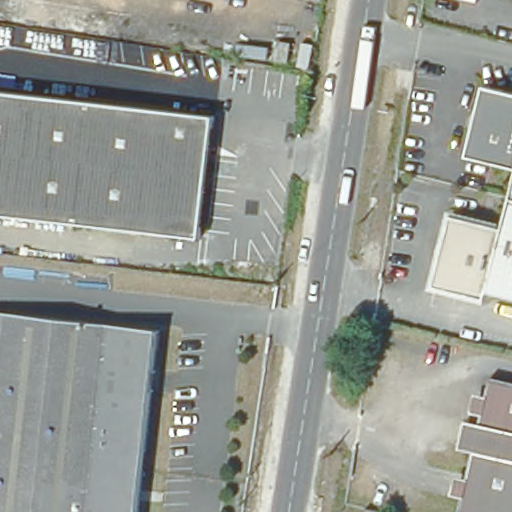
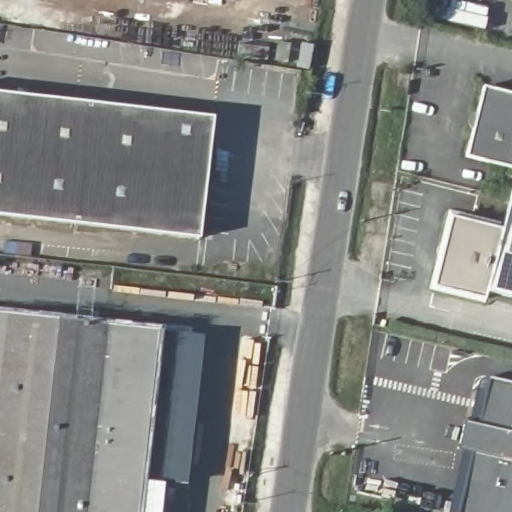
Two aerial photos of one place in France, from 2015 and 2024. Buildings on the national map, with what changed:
unchanged [(294,49),(291,70),(278,68),(281,48),(294,49)]
unchanged [(213,114),(198,235),(0,212),(0,89),(213,114)]
unchanged [(437,284),(451,220),(500,229),(510,178),(463,167),(481,91),(512,99),(512,300),(487,295),(484,306),(434,296),(437,284)]
unchanged [(154,330),(137,512),(0,512),(0,314),(154,330)]
new [(177,333),(204,337),(185,484),(158,480),(177,333)]
unchanged [(478,425),(479,415),(466,412),(470,391),(485,392),(487,376),(512,381),(512,512),(456,512),(460,497),(448,494),(454,474),(465,476),(470,452),(455,447),(463,421),(478,425)]
unchanged [(359,510),(367,512),(359,512),(359,510)]

